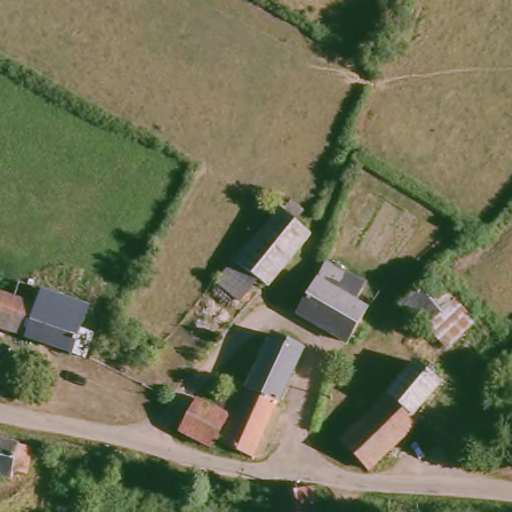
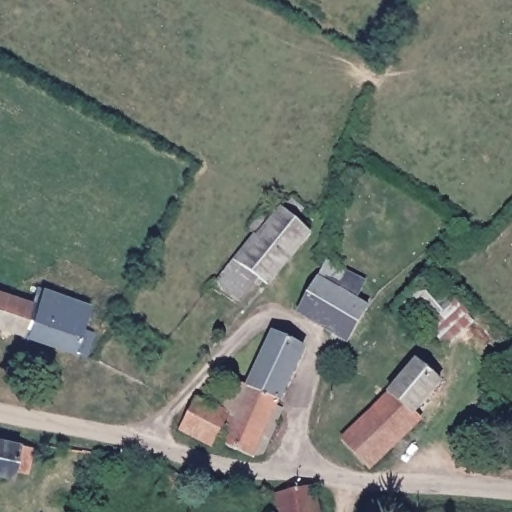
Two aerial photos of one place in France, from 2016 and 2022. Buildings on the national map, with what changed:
unchanged [(261,288),(230,259),(274,209),(286,219),(309,236),(261,288)]
unchanged [(334,277),(327,286),(361,308),(337,344),(290,310),(308,282),(318,265),(334,277)]
unchanged [(455,305),(427,330),(410,312),(394,322),(385,311),(429,276),(434,281),(455,305)]
unchanged [(25,304),(30,287),(65,297),(84,303),(78,330),(90,333),(84,356),(0,329),(0,296),(25,304)]
unchanged [(455,305),(485,337),(483,339),(456,362),(427,331),(427,330),(455,305)]
unchanged [(237,392),(251,361),(267,330),(304,346),(272,410),(237,392)]
unchanged [(435,382),(409,412),(417,418),(403,430),(405,434),(364,471),(336,440),(409,362),(435,382)]
unchanged [(237,392),(272,410),(250,455),(229,455),(222,460),(209,455),(208,444),(176,427),(193,402),(206,411),(222,385),(237,392)]
unchanged [(505,441),(493,447),(484,430),(498,423),(505,441)]
unchanged [(33,450),(28,472),(13,469),(9,480),(0,477),(0,442),(33,450)]
unchanged [(273,493),(309,488),(313,512),(276,512),(273,493)]
unchanged [(383,500),(409,495),(412,512),(385,512),(383,500)]

